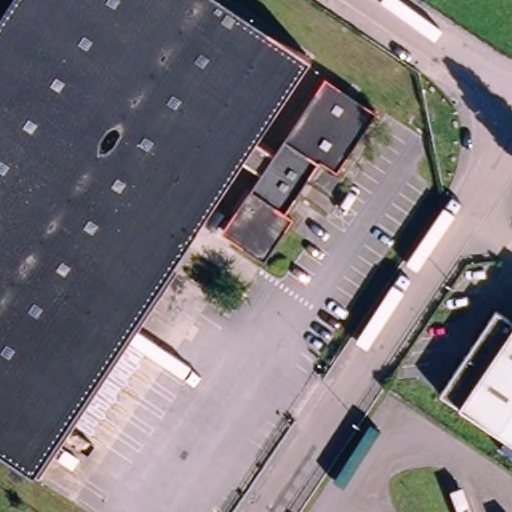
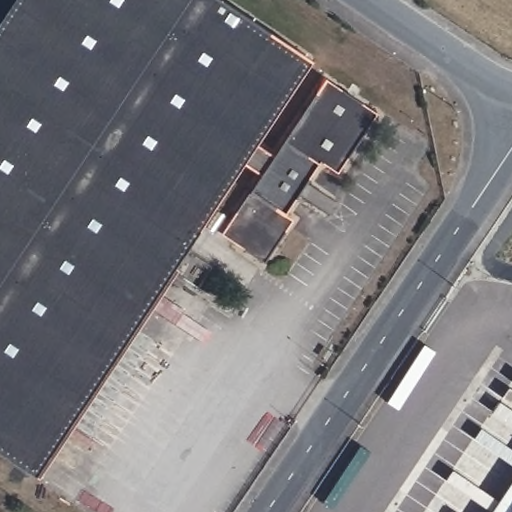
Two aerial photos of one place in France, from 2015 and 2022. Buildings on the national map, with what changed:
unchanged [(0,18),(0,0),(12,0),(0,18)]
unchanged [(312,60),(255,143),(274,157),(285,141),(327,80),(380,116),(337,177),(334,175),(335,174),(320,164),(320,165),(290,208),(285,214),(284,216),(292,222),(262,264),(231,243),(232,242),(229,240),(227,226),(228,224),(251,190),(252,189),(260,177),(241,164),(30,472),(0,453),(0,18),(12,0),(223,0),(312,60)]
demolished [(432,399),(488,316),(507,328),(512,321),(512,453),(432,399)]

